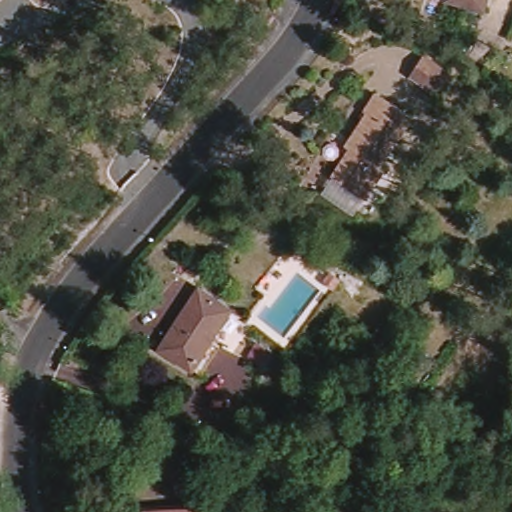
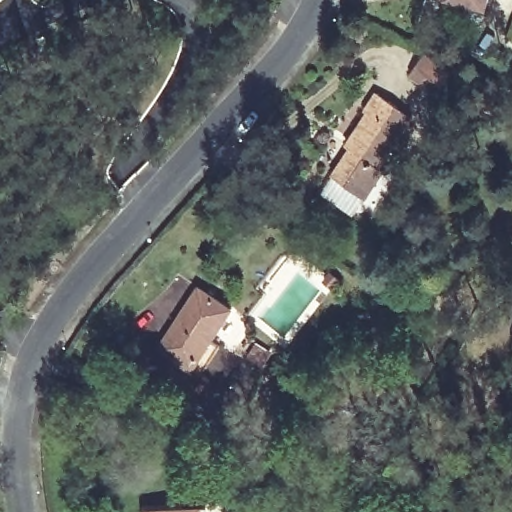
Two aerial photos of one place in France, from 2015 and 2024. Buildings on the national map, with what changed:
unchanged [(456,0),(487,0),(484,9),(456,0)]
unchanged [(411,118),(380,166),(386,169),(367,196),(334,175),(351,149),(348,144),(369,113),(365,109),(376,94),(411,118)]
unchanged [(202,375),(193,369),(160,348),(199,287),(231,308),(213,338),(223,346),(202,375)]
unchanged [(199,512),(144,512),(199,508),(199,512)]

